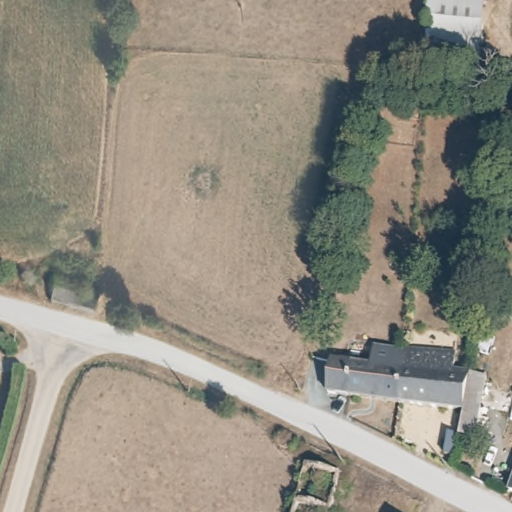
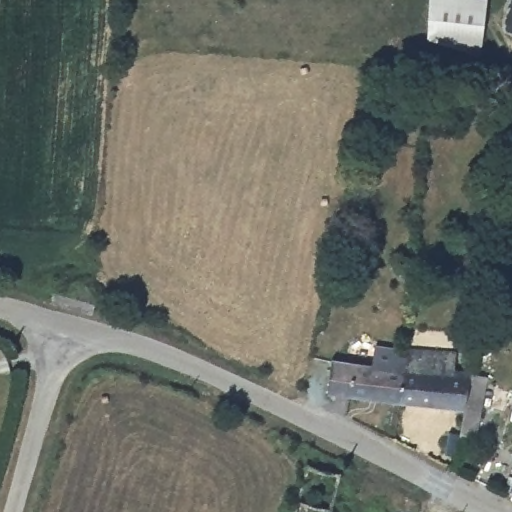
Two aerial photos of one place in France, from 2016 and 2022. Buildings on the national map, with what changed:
unchanged [(473,72),(428,59),(431,0),(492,0),(473,72)]
unchanged [(57,277),(99,289),(93,313),(49,303),(57,277)]
unchanged [(371,365),(374,349),(402,353),(399,371),(403,372),(399,392),(398,406),(330,395),(334,360),(371,365)]
unchanged [(433,355),(424,410),(398,406),(399,392),(403,372),(407,350),(426,354),(433,355)]
unchanged [(458,440),(462,415),(442,413),(424,410),(433,355),(448,357),(454,357),(453,376),(469,377),(468,383),(483,385),(471,451),(456,448),(455,454),(454,456),(443,454),(446,437),(458,440)]
unchanged [(289,436),(293,440),(295,443),(293,446),(290,451),(287,454),(283,454),(278,452),(275,448),(274,443),(275,439),(278,435),(284,435),(289,436)]
unchanged [(506,491),(512,471),(512,494),(506,491)]

